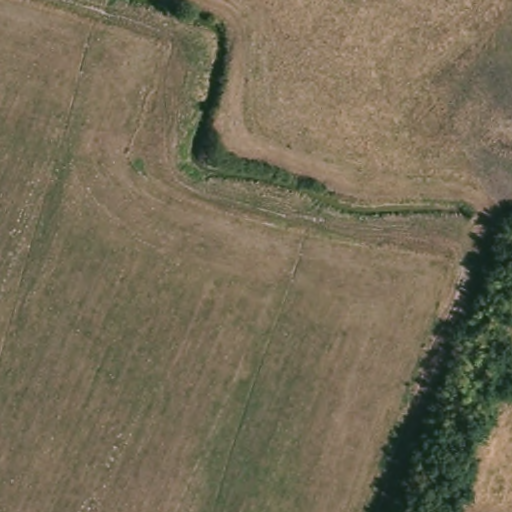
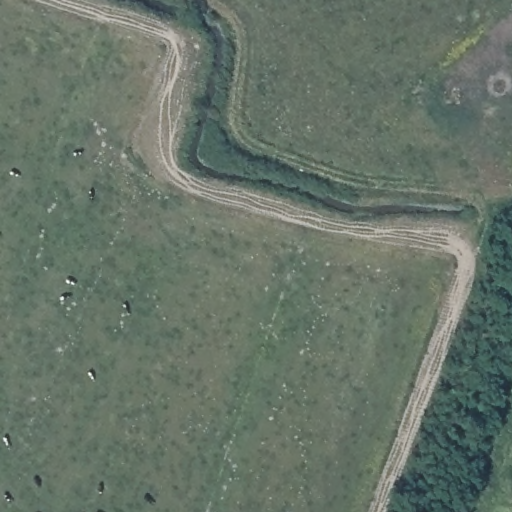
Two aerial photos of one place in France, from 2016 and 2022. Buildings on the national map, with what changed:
[]

